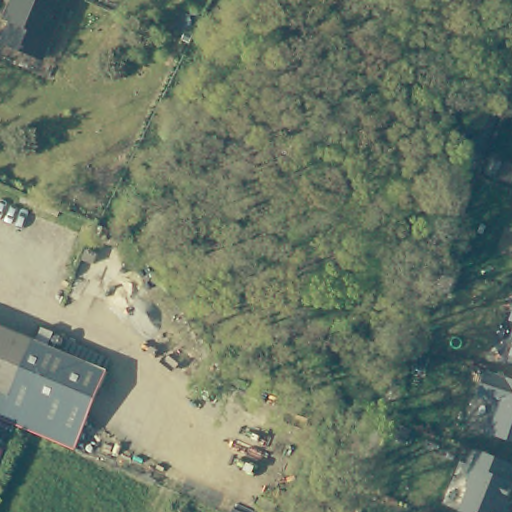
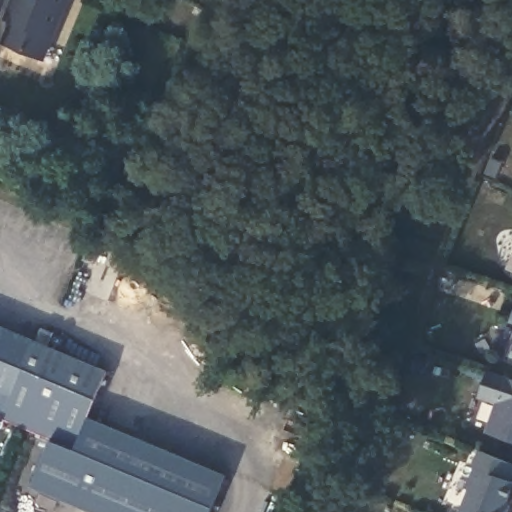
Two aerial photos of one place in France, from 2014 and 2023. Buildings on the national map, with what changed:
unchanged [(0,48),(0,42),(6,28),(0,24),(10,0),(64,0),(36,63),(0,48)]
unchanged [(0,310),(55,334),(109,356),(77,434),(26,414),(0,403),(0,310)]
unchanged [(509,361),(512,354),(512,362),(509,361)]
unchanged [(486,433),(497,403),(478,396),(486,371),(512,379),(512,442),(486,433)]
new [(211,512),(89,512),(30,488),(58,427),(77,434),(84,417),(227,472),(211,512)]
unchanged [(479,451),(493,456),(512,464),(512,480),(512,482),(512,488),(504,509),(507,511),(506,512),(462,512),(460,511),(469,489),(466,488),(474,468),(472,467),(479,451)]

